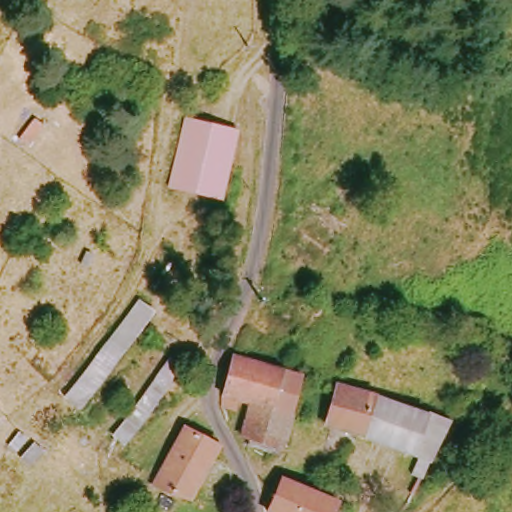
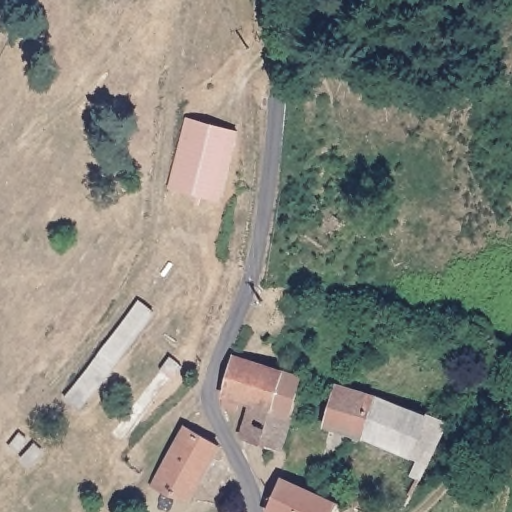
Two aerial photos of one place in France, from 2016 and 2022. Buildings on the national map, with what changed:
unchanged [(184,118),(238,130),(222,200),(167,186),(184,118)]
unchanged [(69,408),(55,394),(125,321),(140,304),(154,318),(140,334),(69,408)]
unchanged [(290,416),(248,403),(238,401),(236,410),(221,407),(233,355),(299,374),(290,416)]
unchanged [(103,433),(172,357),(182,369),(112,443),(103,433)]
unchanged [(384,399),(444,419),(424,461),(392,451),(322,428),(326,417),(339,387),(384,399)]
unchanged [(283,449),(259,442),(240,437),(248,403),(290,416),(283,449)]
unchanged [(187,499),(150,485),(185,425),(217,445),(187,499)]
unchanged [(335,506),(332,512),(267,512),(279,480),(335,506)]

